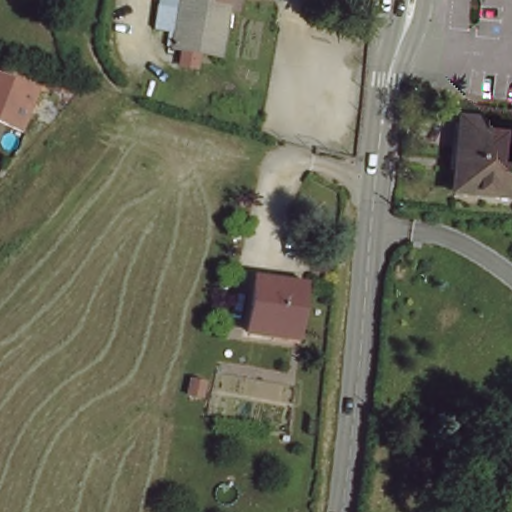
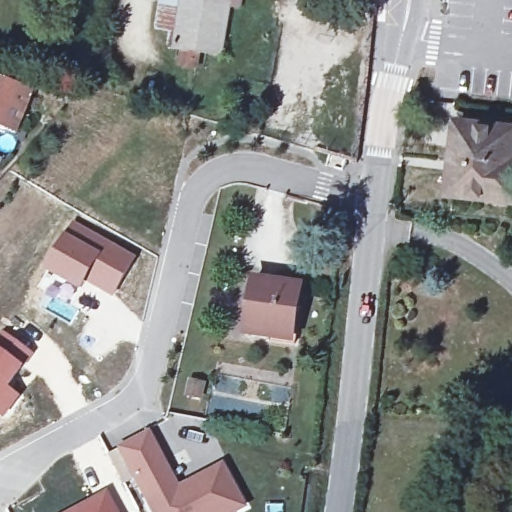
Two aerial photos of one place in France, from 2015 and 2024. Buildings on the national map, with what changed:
unchanged [(235,10),(223,8),(213,56),(160,45),(169,0),(236,0),(235,10)]
new [(15,136),(0,131),(0,125),(1,123),(0,123),(0,79),(33,92),(15,136)]
unchanged [(512,126),(512,196),(452,190),(459,122),(512,126)]
unchanged [(0,125),(0,123),(1,123),(0,125)]
new [(75,221),(137,257),(112,298),(86,283),(81,290),(46,271),(75,221)]
unchanged [(298,284),(290,336),(245,330),(254,278),(298,284)]
new [(34,353),(10,388),(20,395),(2,418),(0,416),(0,335),(3,331),(34,353)]
unchanged [(198,382),(193,398),(182,395),(186,379),(198,382)]
new [(229,512),(161,512),(154,499),(140,473),(125,444),(151,429),(168,458),(182,484),(226,461),(247,502),(229,512)]
new [(119,512),(61,512),(106,487),(119,512)]

